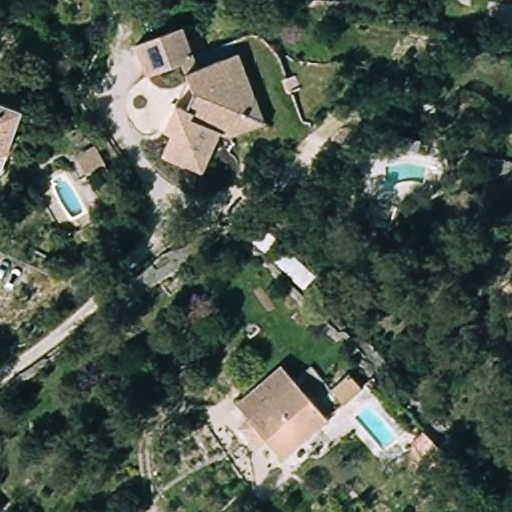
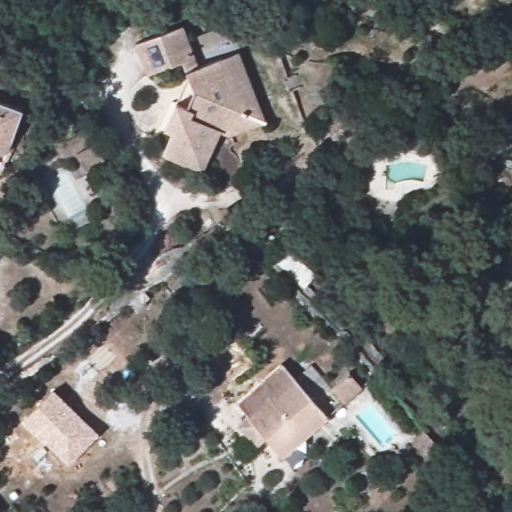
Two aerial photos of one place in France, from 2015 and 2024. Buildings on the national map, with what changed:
unchanged [(201,64),(239,48),(269,122),(223,137),(204,175),(159,154),(169,137),(160,134),(174,97),(184,102),(191,88),(183,65),(143,75),(131,40),(183,20),(201,64)]
unchanged [(8,158),(5,152),(0,155),(0,99),(26,108),(8,158)]
new [(94,144),(109,169),(99,175),(95,169),(86,174),(75,154),(94,144)]
unchanged [(281,461),(234,405),(280,359),(332,417),(281,461)]
new [(349,372),(363,388),(344,404),(331,389),(349,372)]
new [(99,432),(69,465),(23,420),(53,389),(99,432)]

